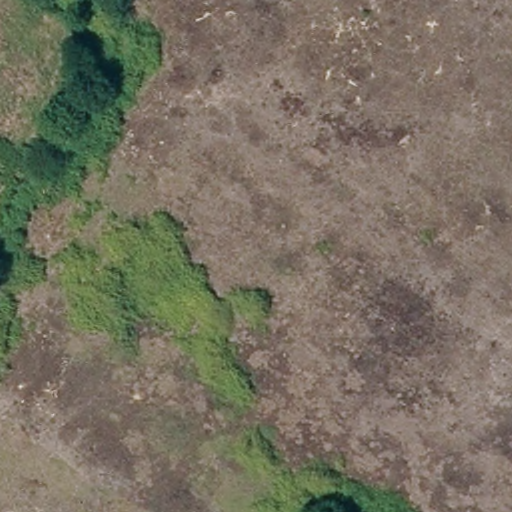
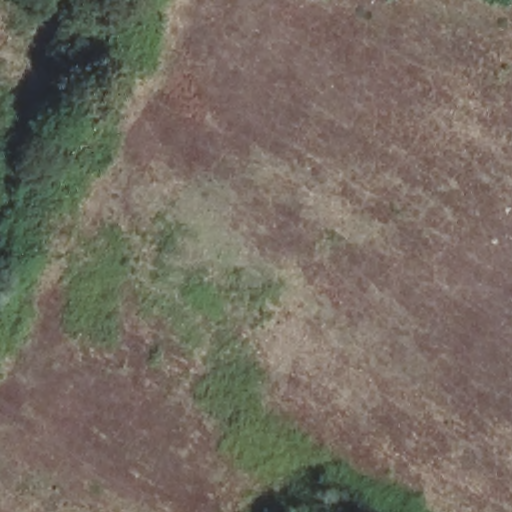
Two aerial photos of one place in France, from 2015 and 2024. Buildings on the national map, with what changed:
[]

